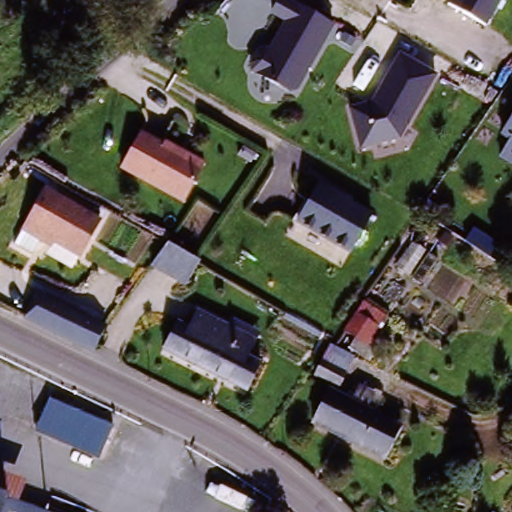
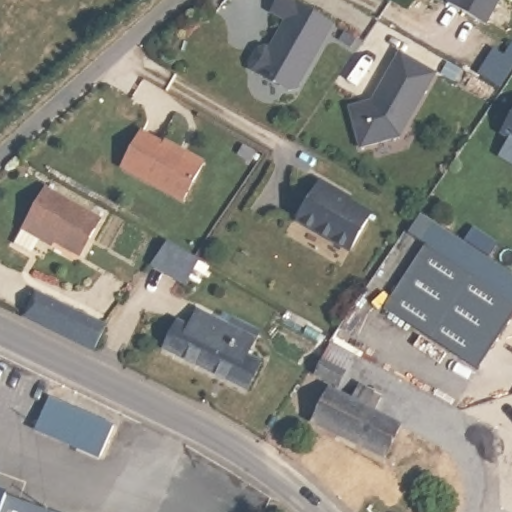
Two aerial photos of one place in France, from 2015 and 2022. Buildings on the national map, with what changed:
unchanged [(299,93),(292,96),(250,73),(250,68),(252,56),(262,49),(269,49),(282,23),(270,15),(278,0),(289,0),(335,25),(299,93)]
unchanged [(446,6),(449,0),(503,0),(487,29),(446,6)]
unchanged [(437,78),(399,143),(360,151),(348,109),(371,102),(399,52),(437,78)]
unchanged [(509,143),(499,137),(512,114),(512,169),(498,161),(509,143)]
unchanged [(122,171),(143,134),(203,168),(183,204),(122,171)]
unchanged [(294,225),(319,184),(371,213),(347,251),(294,225)]
unchanged [(23,230),(45,191),(98,220),(78,257),(42,236),(38,239),(30,254),(13,244),(23,230)]
new [(512,321),(478,371),(385,310),(426,247),(421,243),(433,224),(512,276),(512,321)]
new [(497,243),(490,255),(466,239),(475,227),(497,243)]
unchanged [(172,250),(202,266),(185,293),(154,272),(172,250)]
unchanged [(106,332),(92,357),(22,319),(35,295),(106,332)]
unchanged [(183,324),(190,309),(249,339),(242,353),(183,324)]
demolished [(367,310),(385,321),(367,349),(348,337),(367,310)]
unchanged [(252,358),(237,387),(158,347),(172,319),(183,324),(242,353),(252,358)]
unchanged [(325,379),(337,353),(354,360),(342,386),(325,379)]
unchanged [(388,463),(317,427),(333,393),(357,405),(365,389),(382,395),(373,413),(405,429),(388,463)]
unchanged [(36,430),(52,399),(113,429),(98,460),(36,430)]
unchanged [(28,506),(30,502),(43,506),(42,510),(48,512),(0,512),(0,495),(28,506)]

